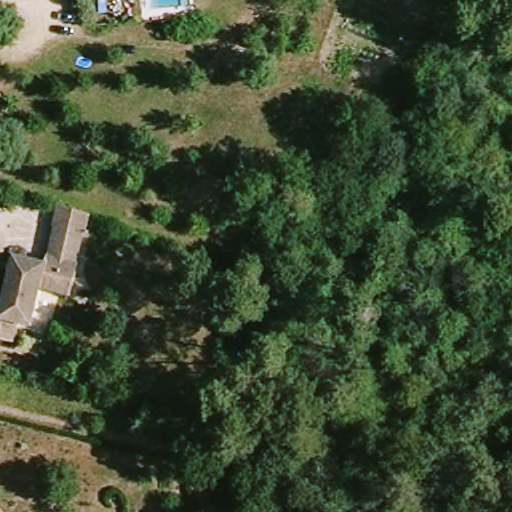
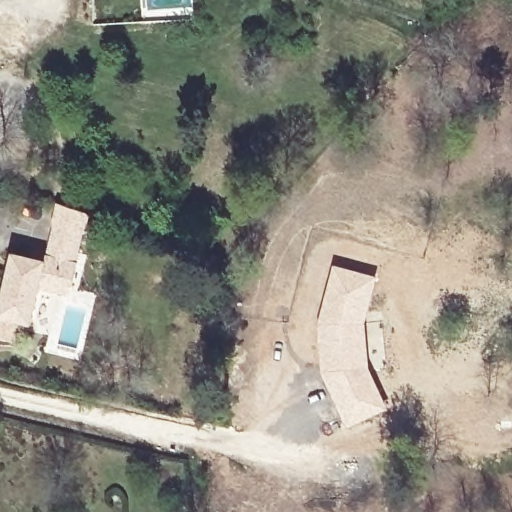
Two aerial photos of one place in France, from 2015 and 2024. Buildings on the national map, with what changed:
unchanged [(19,323),(16,341),(0,337),(0,313),(1,313),(14,253),(45,261),(57,199),(89,209),(85,226),(82,230),(77,262),(72,287),(71,295),(41,289),(33,326),(19,323)]
new [(334,264),(377,277),(369,312),(367,324),(380,323),(382,341),(372,342),(372,345),(369,345),(371,369),(387,409),(347,427),(322,375),(318,340),(317,327),(334,264)]

